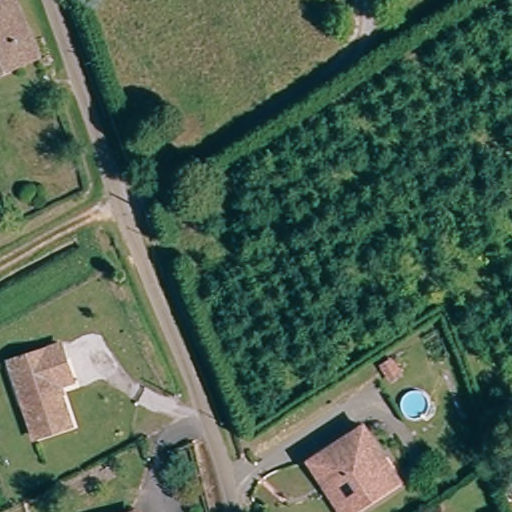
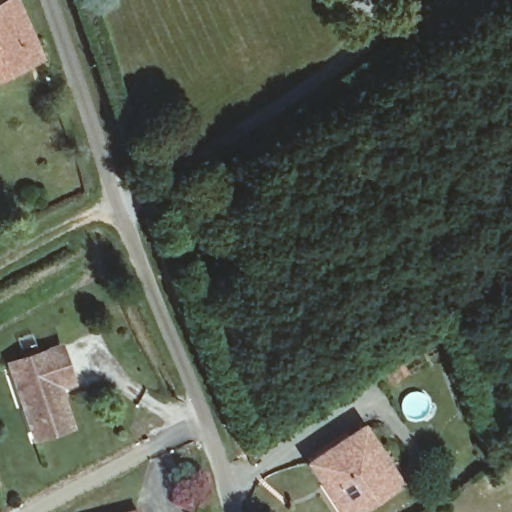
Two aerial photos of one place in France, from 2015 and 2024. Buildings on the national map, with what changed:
unchanged [(0,72),(0,0),(11,0),(35,57),(0,72)]
unchanged [(75,378),(61,383),(78,423),(42,438),(18,381),(11,365),(23,360),(61,344),(75,378)]
unchanged [(310,462),(364,428),(393,475),(398,483),(385,492),(368,503),(353,512),(341,512),(323,483),(310,462)]

